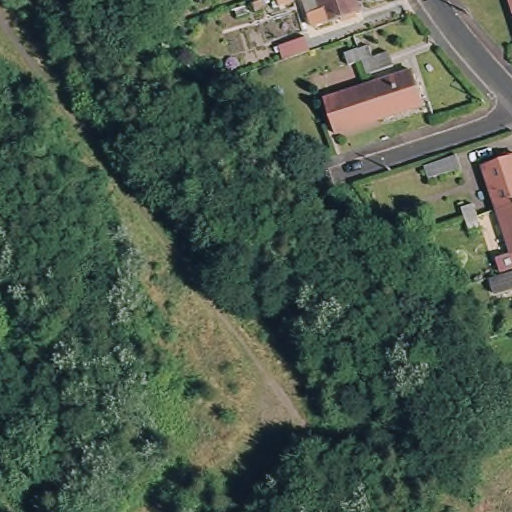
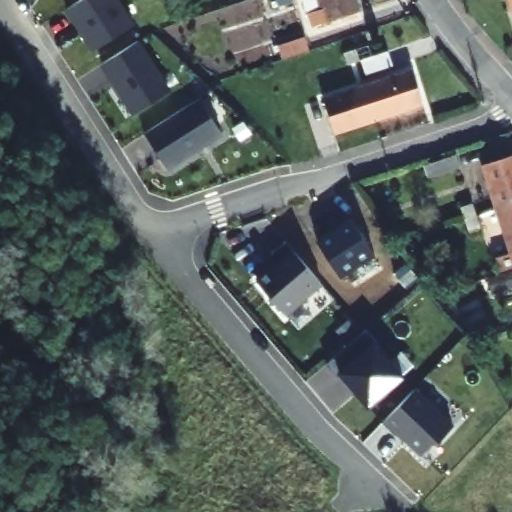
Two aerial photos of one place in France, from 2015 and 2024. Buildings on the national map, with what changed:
new [(136,24),(94,53),(65,12),(83,0),(120,0),(136,24)]
unchanged [(278,9),(275,0),(292,0),(293,4),(278,9)]
unchanged [(367,14),(319,30),(313,15),(308,0),(362,0),(367,14)]
unchanged [(509,0),(512,0),(512,11),(509,0)]
unchanged [(284,63),(279,49),(307,39),(311,54),(284,63)]
new [(171,91),(134,115),(100,66),(140,40),(171,91)]
unchanged [(347,56),(359,52),(371,48),(375,59),(362,64),(350,68),(347,56)]
unchanged [(370,88),(415,74),(425,107),(382,121),(370,88)]
unchanged [(382,121),(338,135),(327,102),(370,88),(382,121)]
new [(224,135),(169,171),(145,134),(200,99),(224,135)]
unchanged [(456,159),(460,172),(427,182),(423,169),(456,159)]
unchanged [(498,213),(484,169),(512,159),(512,208),(498,213)]
unchanged [(470,235),(466,224),(457,197),(469,193),(477,220),(480,231),(470,235)]
unchanged [(512,208),(512,272),(501,276),(500,272),(497,261),(512,255),(498,213),(512,208)]
new [(375,257),(341,279),(317,243),(354,218),(375,257)]
new [(322,285),(288,316),(257,278),(276,260),(272,254),(287,241),(322,285)]
new [(375,342),(404,377),(368,409),(337,376),(327,365),(364,330),(375,342)]
new [(456,425),(437,446),(437,445),(433,443),(422,457),(384,424),(417,388),(456,425)]

